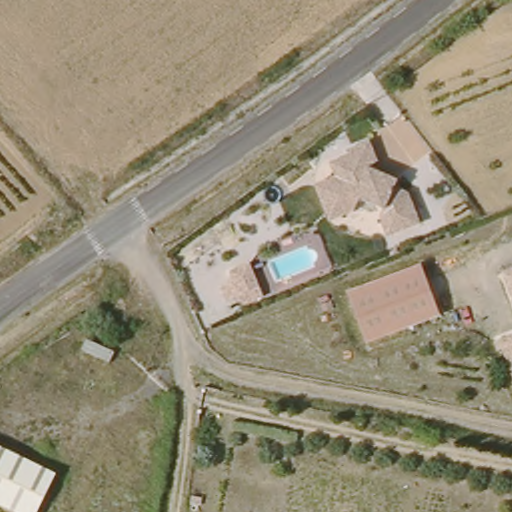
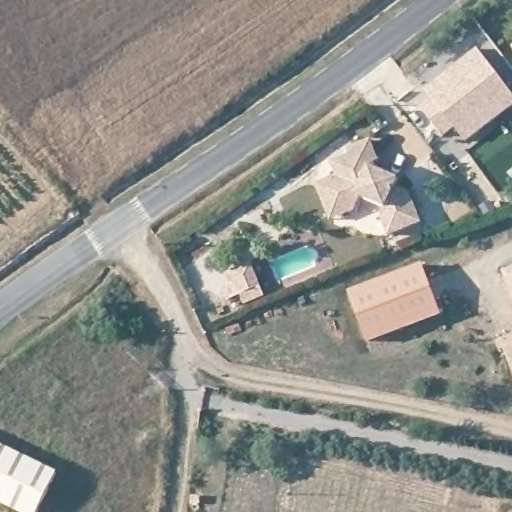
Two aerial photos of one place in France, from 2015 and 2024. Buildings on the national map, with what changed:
new [(492,138),(473,152),(462,137),(450,146),(428,116),(440,107),(424,85),(477,46),(512,94),(512,123),(492,138)]
unchanged [(307,184),(317,180),(327,174),(321,160),(339,151),(336,147),(359,135),(369,155),(364,156),(367,164),(389,176),(386,185),(402,192),(417,221),(385,237),(375,219),(379,210),(354,201),(350,211),(336,218),(327,222),(307,184)]
unchanged [(365,343),(346,295),(419,265),(439,313),(365,343)]
unchanged [(502,271),(512,267),(512,294),(502,271)]
unchanged [(504,342),(512,338),(512,361),(504,342)]
unchanged [(0,445),(58,473),(39,512),(15,512),(0,505),(0,445)]

